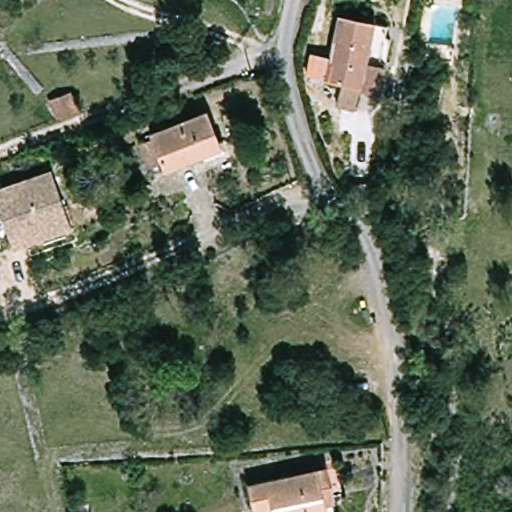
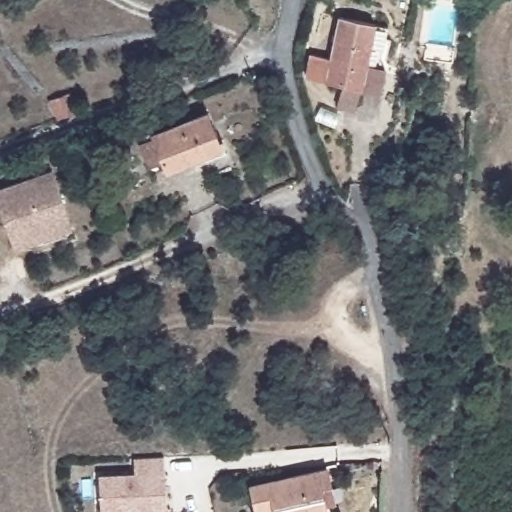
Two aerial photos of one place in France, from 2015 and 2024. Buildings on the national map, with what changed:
unchanged [(416,0),(416,2),(405,0),(416,0)]
unchanged [(383,22),(369,87),(355,85),(356,82),(355,82),(350,103),(333,100),(338,78),(321,75),(335,12),(383,22)]
unchanged [(450,51),(447,65),(422,60),(424,46),(450,51)]
unchanged [(48,101),(70,94),(76,112),(55,120),(48,101)]
unchanged [(145,146),(156,141),(154,137),(211,114),(225,149),(168,172),(165,165),(154,169),(145,146)]
unchanged [(10,251),(0,220),(0,190),(50,175),(65,222),(68,234),(25,247),(10,251)]
unchanged [(75,197),(95,189),(98,200),(80,207),(75,197)]
new [(131,475),(130,458),(160,457),(163,512),(154,512),(97,512),(95,477),(131,475)]
unchanged [(332,497),(323,499),(325,512),(255,512),(249,487),(326,470),(332,497)]

